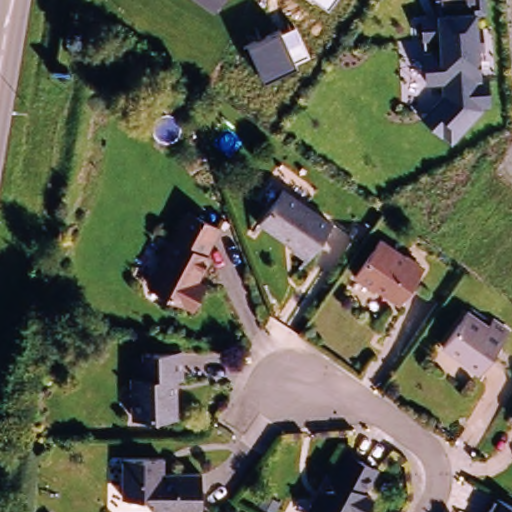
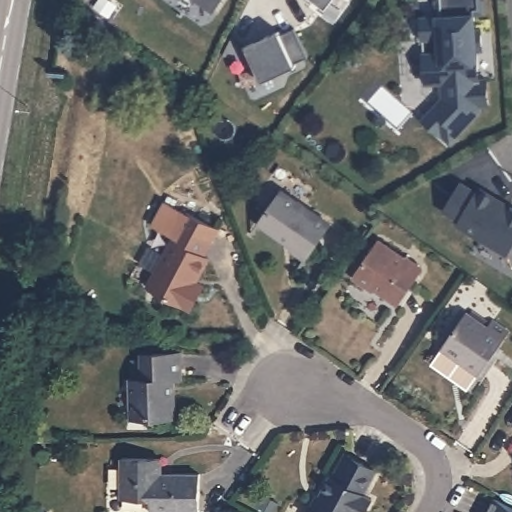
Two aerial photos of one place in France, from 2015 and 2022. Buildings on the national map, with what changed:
unchanged [(217,6),(210,0),(222,0),(217,6)]
unchanged [(313,1),(311,0),(313,0),(313,1)]
unchanged [(328,7),(317,0),(333,0),(328,7)]
unchanged [(478,13),(481,68),(482,77),(491,77),(493,107),(485,108),(485,111),(453,146),(443,137),(423,119),(444,98),(443,84),(428,85),(425,52),(439,51),(438,41),(423,42),(422,15),(437,14),(436,0),(487,0),(488,15),(478,13)]
unchanged [(248,45),(282,30),(283,34),(296,28),(309,56),(294,61),(296,65),(265,79),(258,65),(254,68),(244,47),(248,45)]
new [(476,192),(479,188),(493,196),(494,201),(507,208),(508,205),(512,207),(512,243),(507,252),(458,225),(461,220),(444,211),(460,183),(476,192)]
unchanged [(332,221),(308,256),(293,245),(295,244),(261,219),(283,187),(332,221)]
unchanged [(218,234),(205,262),(209,263),(197,288),(205,292),(197,306),(154,285),(187,218),(218,234)]
unchanged [(404,261),(405,260),(422,271),(398,307),(375,292),(373,294),(354,281),(379,244),(404,261)]
unchanged [(489,332),(494,325),(509,335),(481,377),(443,351),(467,317),(489,332)]
unchanged [(177,353),(178,379),(171,379),(172,417),(129,418),(128,379),(140,379),(140,353),(177,353)]
unchanged [(318,493),(328,475),(340,453),(345,457),(374,473),(362,496),(368,500),(362,512),(302,512),(314,490),(318,493)]
unchanged [(160,472),(197,472),(199,512),(151,512),(151,500),(121,499),(120,459),(160,458),(160,472)]
unchanged [(512,510),(512,512),(482,512),(490,499),(512,510)]

